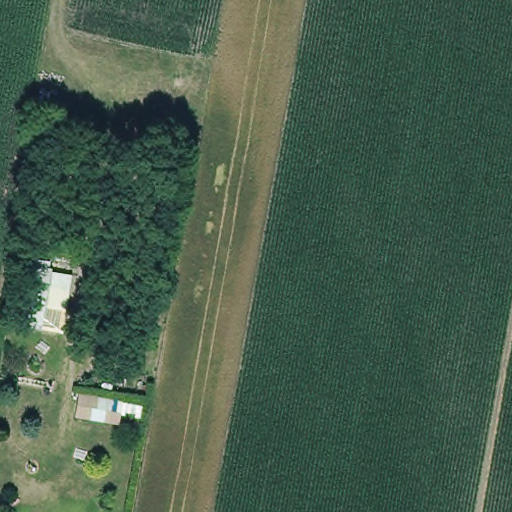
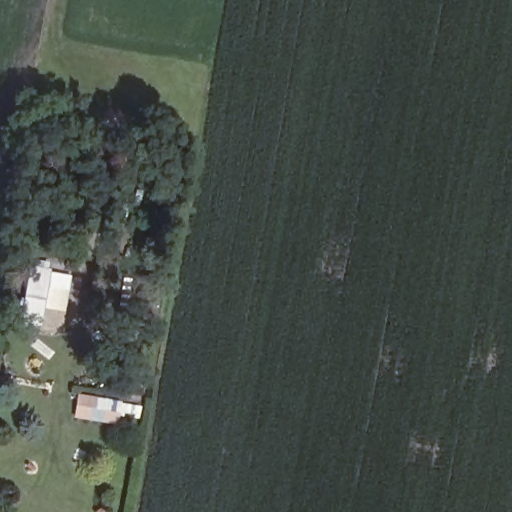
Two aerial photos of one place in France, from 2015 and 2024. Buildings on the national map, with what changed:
unchanged [(24,327),(33,268),(69,276),(56,335),(24,327)]

